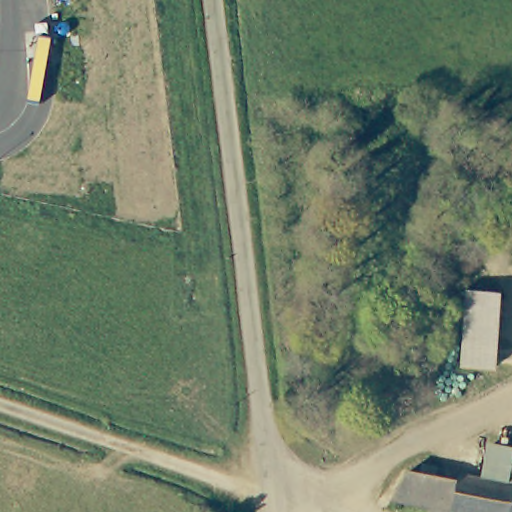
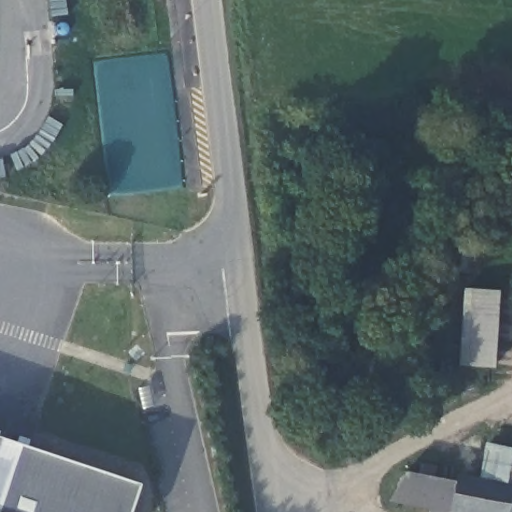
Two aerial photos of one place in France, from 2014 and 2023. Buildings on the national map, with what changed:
unchanged [(460,366),(465,290),(499,292),(494,368),(460,366)]
new [(0,512),(0,439),(138,486),(130,512),(0,512)]
unchanged [(461,469),(484,474),(489,441),(512,446),(512,512),(453,512),(460,474),(461,469)]
unchanged [(400,495),(411,467),(424,469),(425,461),(439,462),(439,471),(460,474),(453,512),(429,512),(430,502),(400,495)]

